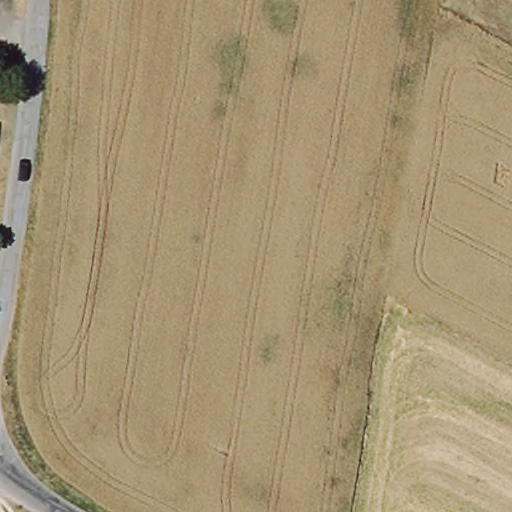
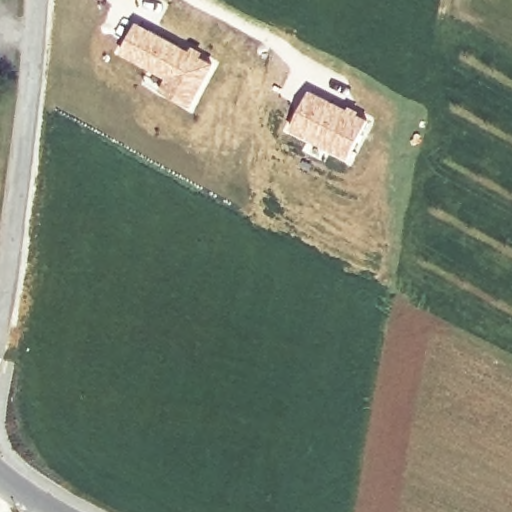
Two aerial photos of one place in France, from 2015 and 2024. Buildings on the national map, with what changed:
new [(138,20),(189,48),(193,43),(216,60),(193,105),(159,85),(164,79),(118,50),(138,20)]
new [(311,88),(369,117),(349,156),(290,125),(311,88)]

